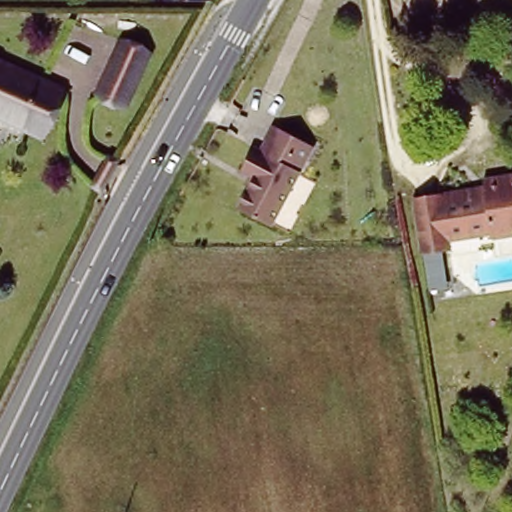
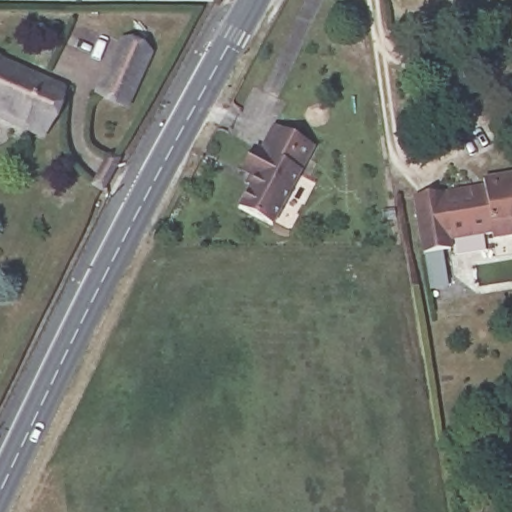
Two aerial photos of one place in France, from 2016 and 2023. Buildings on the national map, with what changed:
unchanged [(145,55),(123,107),(100,95),(122,44),(145,55)]
unchanged [(66,95),(45,139),(0,120),(0,65),(66,95)]
unchanged [(255,182),(247,177),(261,155),(276,127),(315,151),(271,227),(239,210),(251,190),(255,182)]
unchanged [(433,252),(427,253),(422,231),(416,199),(422,197),(488,185),(488,177),(512,172),(512,233),(494,237),(492,229),(454,236),(454,248),(443,250),(433,252)]

